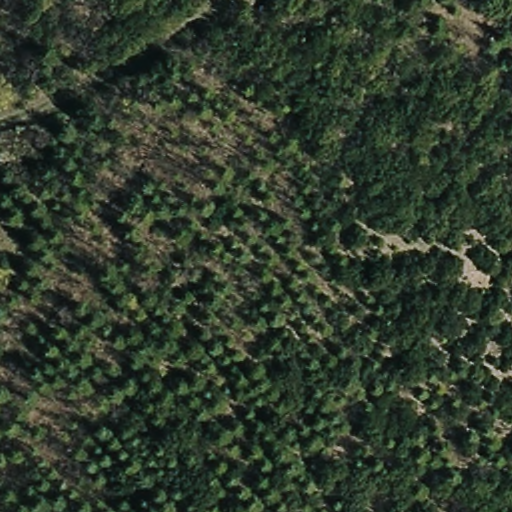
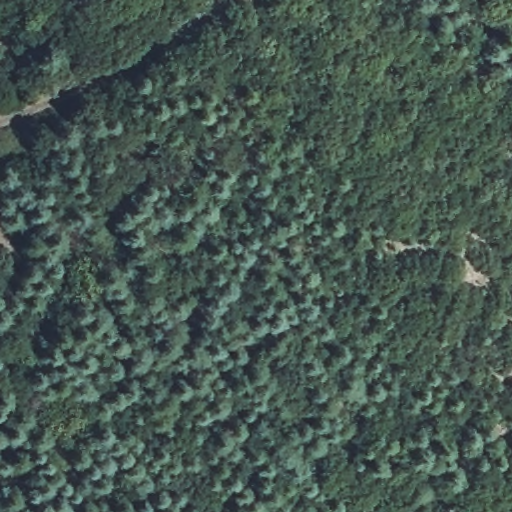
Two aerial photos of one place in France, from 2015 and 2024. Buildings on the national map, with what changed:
[]

